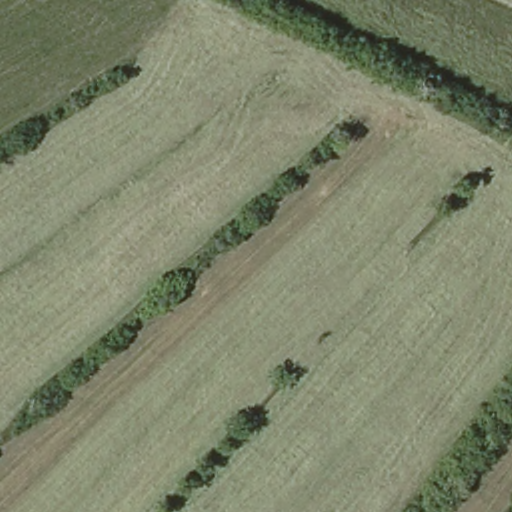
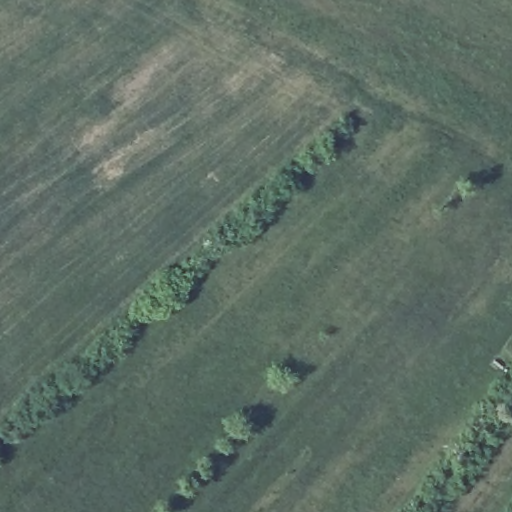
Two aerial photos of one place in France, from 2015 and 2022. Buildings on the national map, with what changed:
[]

